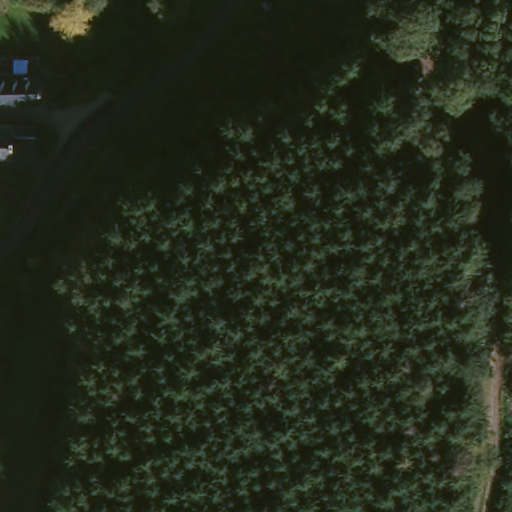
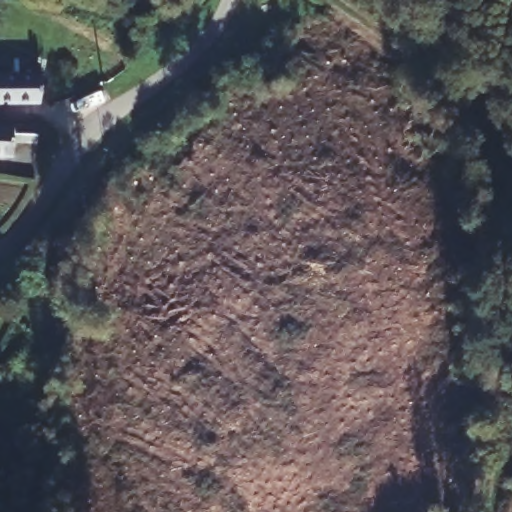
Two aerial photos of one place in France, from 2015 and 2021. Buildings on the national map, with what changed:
unchanged [(36,80),(36,110),(0,110),(0,77),(36,80)]
unchanged [(34,131),(34,150),(10,148),(9,162),(0,162),(0,129),(34,131)]

